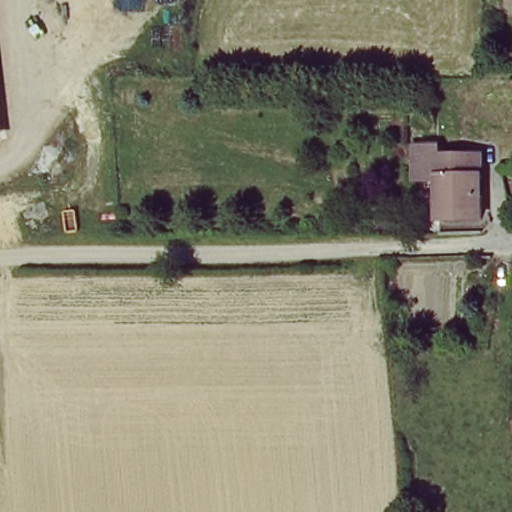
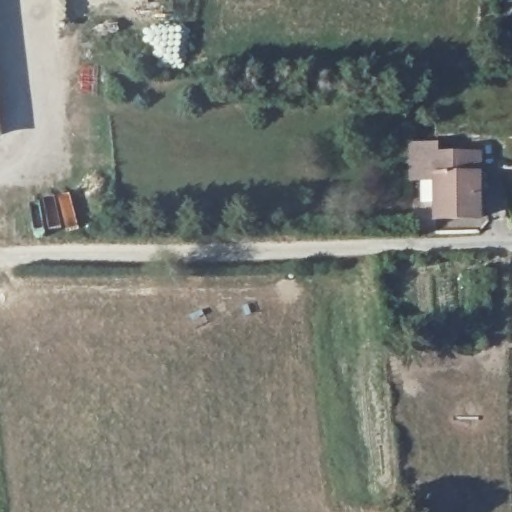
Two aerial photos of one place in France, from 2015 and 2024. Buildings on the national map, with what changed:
unchanged [(478,150),(479,215),(437,215),(437,177),(413,177),(413,141),(435,141),(435,150),(478,150)]

